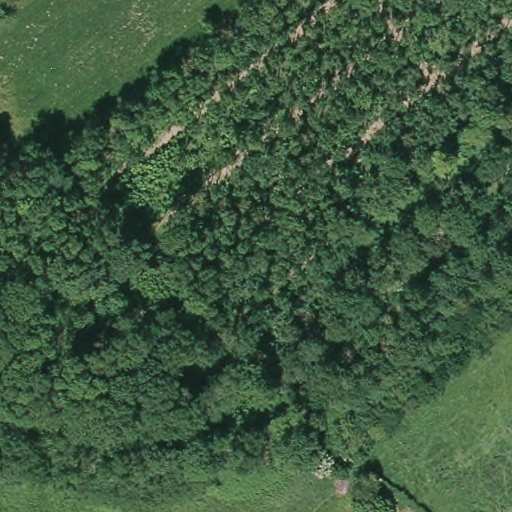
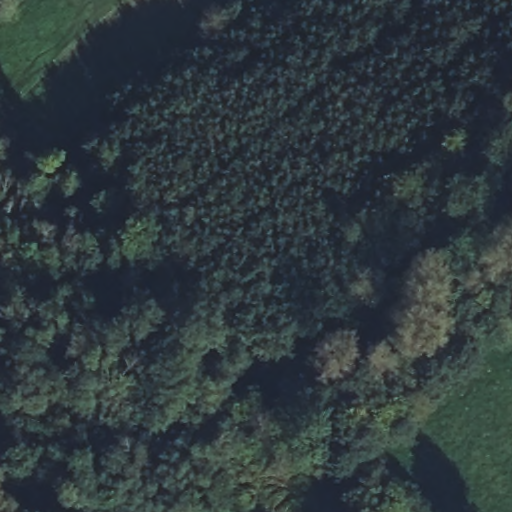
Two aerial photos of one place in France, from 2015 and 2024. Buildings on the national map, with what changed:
unchanged [(380,290),(367,301),(357,288),(369,275),(380,290)]

